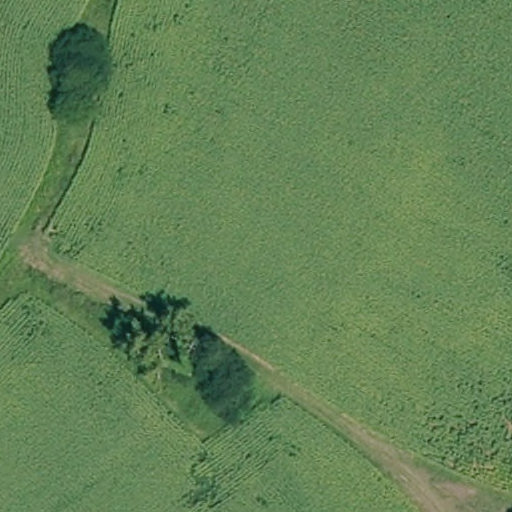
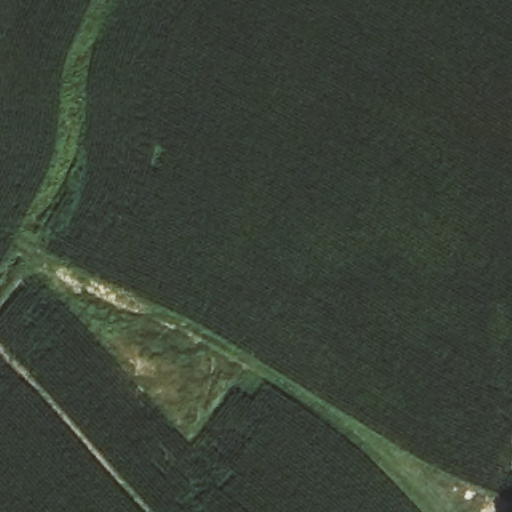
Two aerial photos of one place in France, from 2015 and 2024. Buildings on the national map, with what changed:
[]

